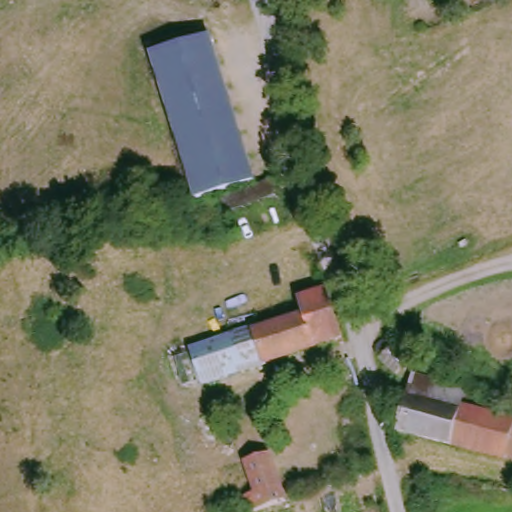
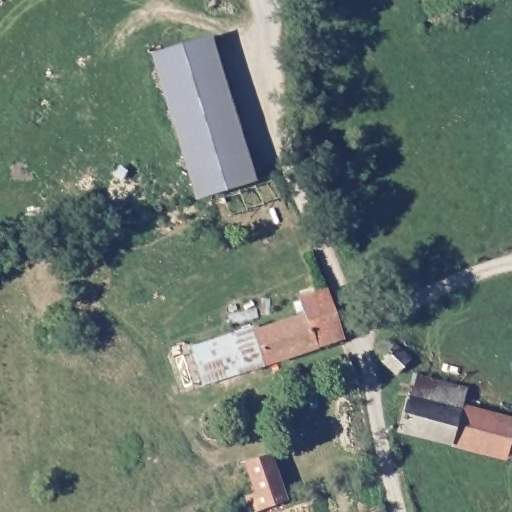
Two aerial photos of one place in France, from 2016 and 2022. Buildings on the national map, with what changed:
unchanged [(152,56),(211,41),(247,186),(208,196),(188,201),(152,56)]
unchanged [(205,384),(190,349),(259,324),(261,331),(309,315),(305,303),(326,294),(342,337),(205,384)]
unchanged [(422,376),(399,364),(404,347),(427,360),(422,376)]
unchanged [(468,417),(420,405),(427,381),(475,394),(470,409),(468,417)]
unchanged [(512,420),(512,459),(413,429),(420,405),(468,417),(470,409),(512,420)]
unchanged [(250,496),(262,490),(251,461),(272,452),(288,495),(254,507),(250,496)]

